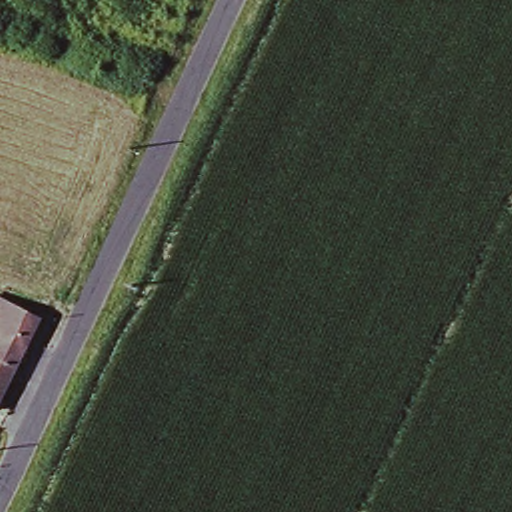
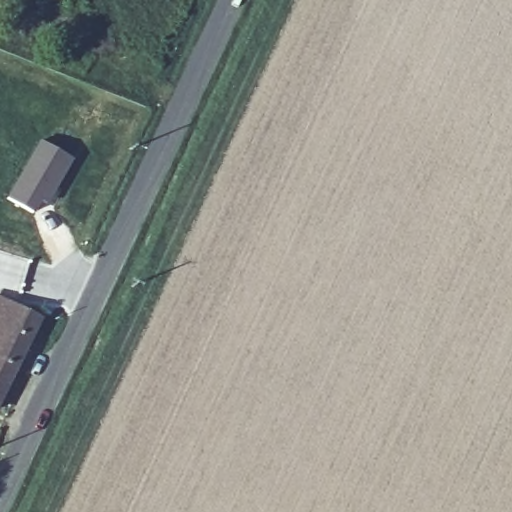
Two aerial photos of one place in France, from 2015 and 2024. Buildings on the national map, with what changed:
new [(39,139),(74,158),(51,197),(38,215),(6,197),(39,139)]
unchanged [(0,297),(38,320),(14,367),(0,361),(0,297)]
unchanged [(0,395),(0,361),(14,367),(0,395)]

